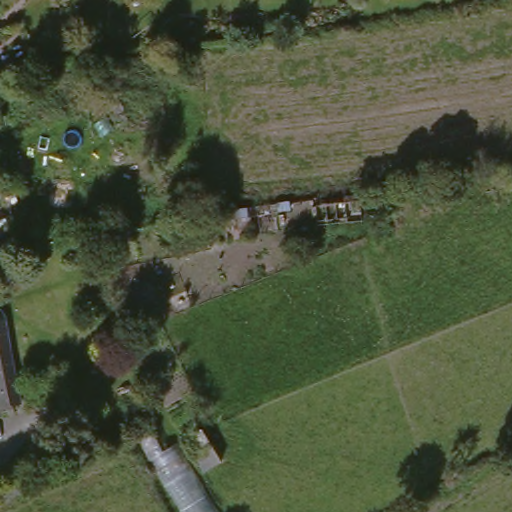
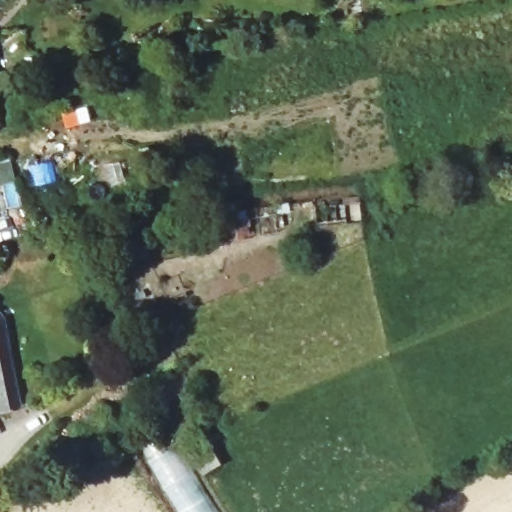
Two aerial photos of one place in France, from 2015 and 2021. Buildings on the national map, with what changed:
unchanged [(343,199),(359,196),(360,203),(343,206),(343,199)]
unchanged [(275,205),(288,204),(289,212),(276,214),(275,205)]
unchanged [(0,410),(0,324),(16,406),(0,410)]
unchanged [(133,450),(162,432),(216,512),(173,512),(133,450)]

